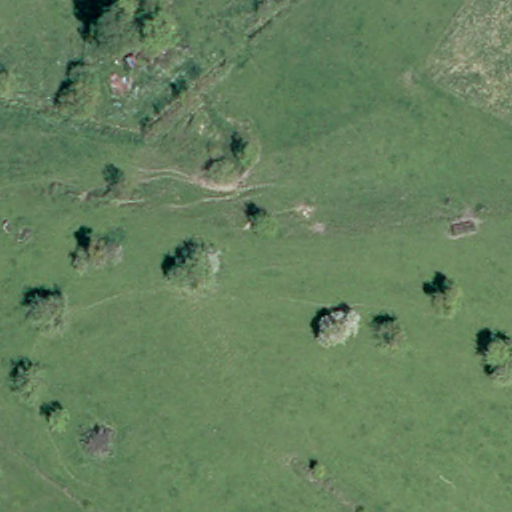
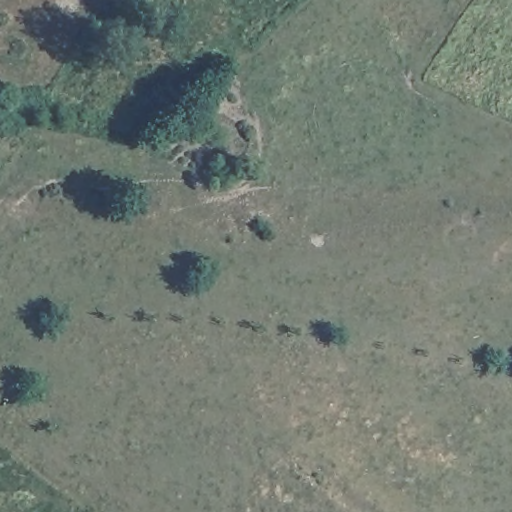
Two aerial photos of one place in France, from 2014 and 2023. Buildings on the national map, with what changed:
[]

